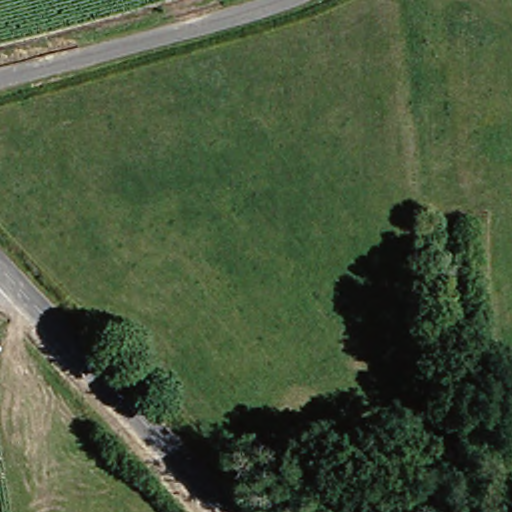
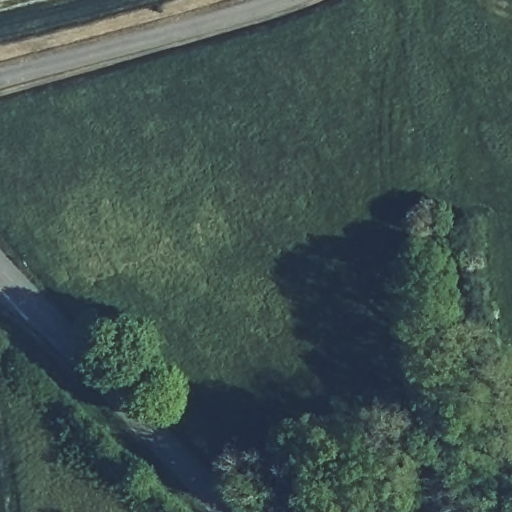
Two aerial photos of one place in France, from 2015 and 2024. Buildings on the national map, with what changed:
[]

